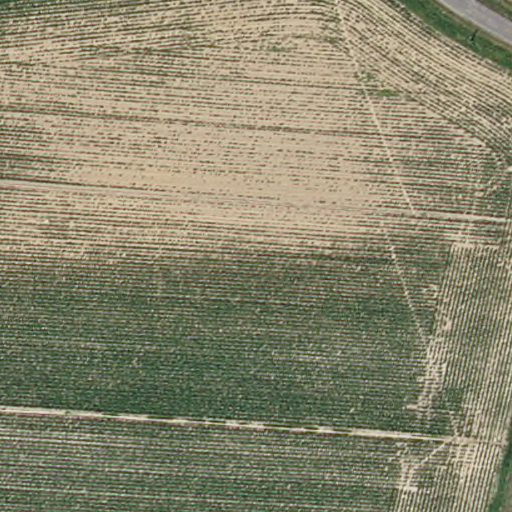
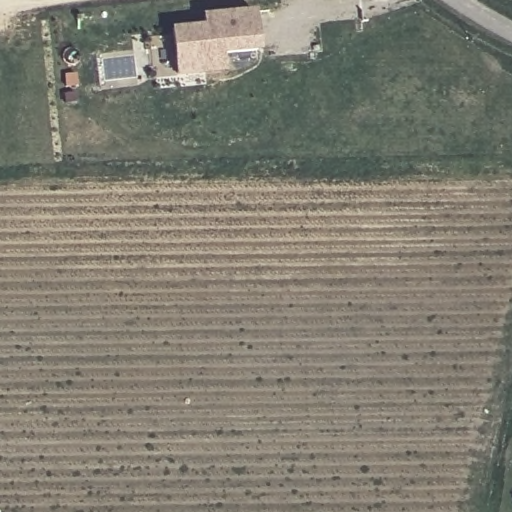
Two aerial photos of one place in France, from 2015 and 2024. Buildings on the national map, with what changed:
new [(258,46),(208,50),(210,69),(177,71),(173,25),(206,22),(204,12),(254,7),(258,46)]

